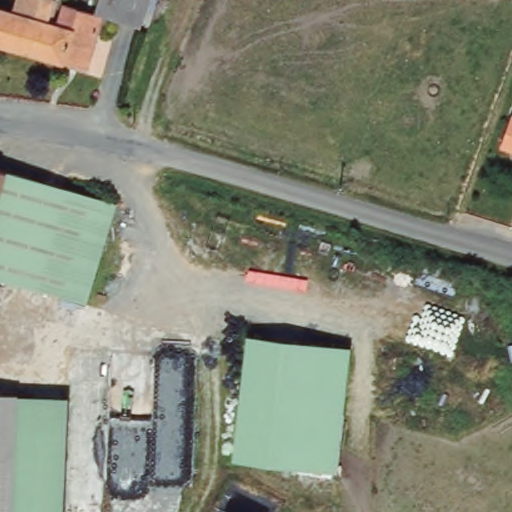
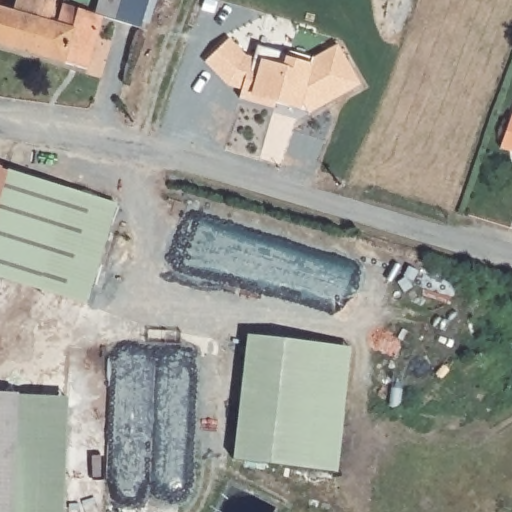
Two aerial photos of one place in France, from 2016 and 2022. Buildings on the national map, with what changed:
unchanged [(18,11),(21,0),(60,0),(53,20),(63,22),(69,4),(82,7),(82,5),(97,9),(100,0),(151,0),(143,29),(106,17),(91,69),(0,42),(0,4),(18,11)]
new [(304,102),(294,100),(292,105),(280,101),(278,105),(244,96),(246,87),(232,83),(209,60),(233,36),(250,53),(258,55),(261,42),(292,52),(293,49),(317,56),(342,42),(364,82),(312,111),(310,107),(303,106),(304,102)]
unchanged [(512,121),(512,150),(502,147),(512,121)]
unchanged [(47,179),(21,277),(0,271),(0,166),(47,179)]
unchanged [(21,277),(47,179),(80,189),(119,202),(91,297),(33,281),(21,277)]
unchanged [(335,472),(231,460),(246,336),(352,348),(335,472)]
unchanged [(22,392),(15,512),(0,512),(0,391),(22,392)]
unchanged [(22,392),(69,395),(65,512),(15,512),(22,392)]

